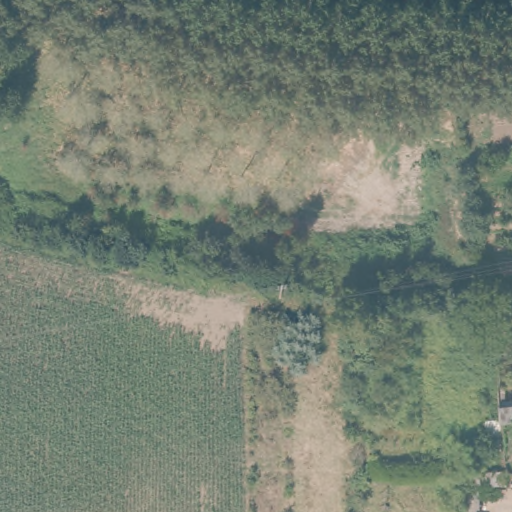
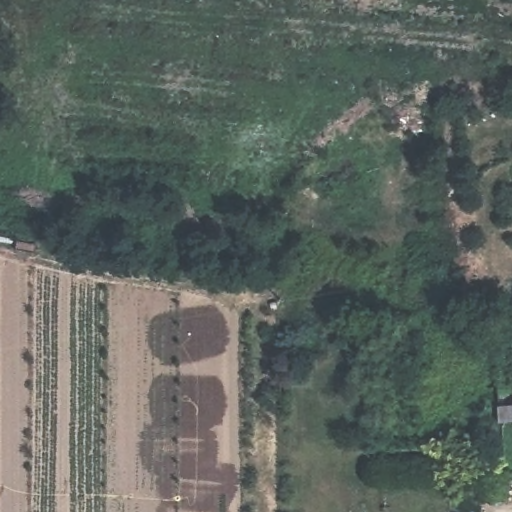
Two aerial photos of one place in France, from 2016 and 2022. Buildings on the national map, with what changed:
unchanged [(512,421),(501,420),(500,404),(512,405),(512,421)]
unchanged [(506,476),(506,487),(494,487),(494,483),(483,482),(483,486),(469,486),(469,474),(506,476)]
unchanged [(482,496),(482,510),(468,509),(468,496),(482,496)]

